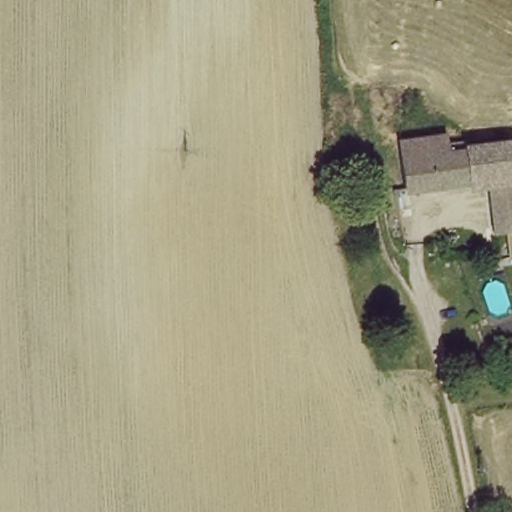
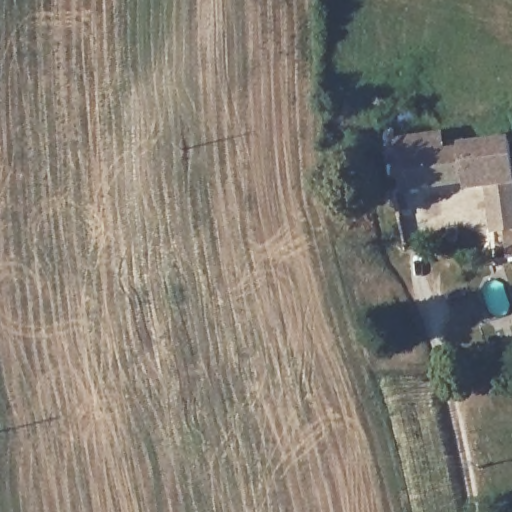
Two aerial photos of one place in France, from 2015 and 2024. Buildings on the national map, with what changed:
unchanged [(406,135),(430,132),(451,130),(453,152),(408,158),(406,135)]
unchanged [(512,144),(512,252),(468,256),(467,232),(499,229),(494,180),(411,186),(408,158),(453,152),(512,144)]

